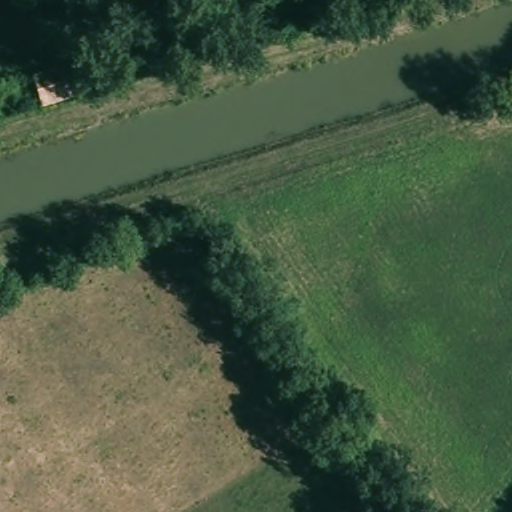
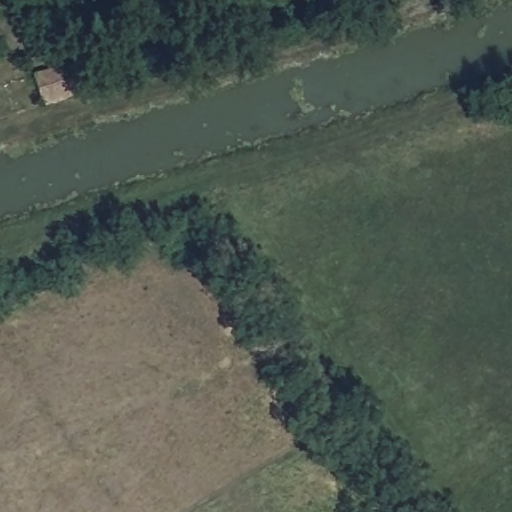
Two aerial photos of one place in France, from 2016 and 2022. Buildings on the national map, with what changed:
unchanged [(60,69),(72,98),(41,108),(30,77),(60,69)]

